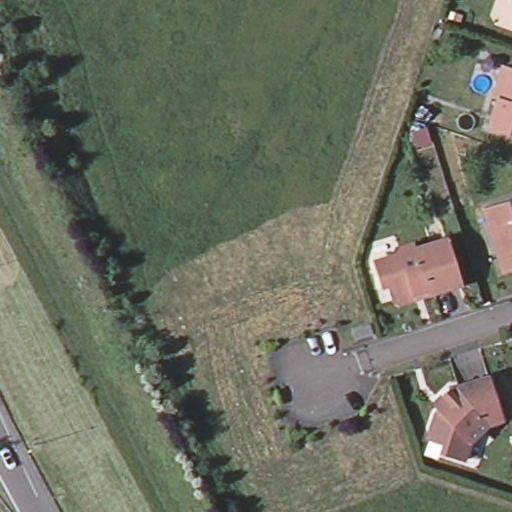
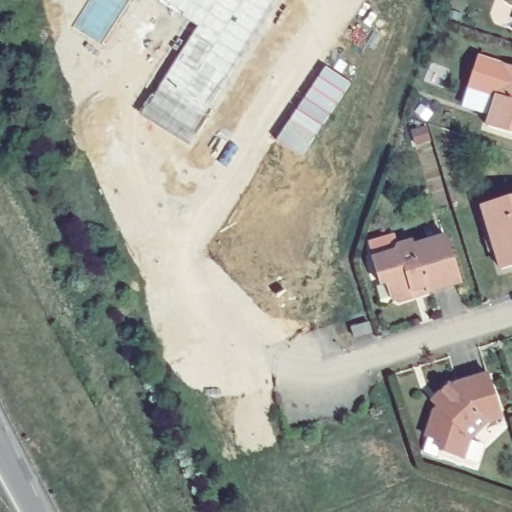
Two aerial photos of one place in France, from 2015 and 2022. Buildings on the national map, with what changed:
new [(141,115),(197,27),(159,1),(160,0),(276,0),(189,142),(141,115)]
unchanged [(495,91),(505,60),(512,62),(512,129),(491,122),(500,92),(495,91)]
unchanged [(512,198),(512,266),(505,268),(485,207),(512,198)]
unchanged [(373,260),(395,252),(397,247),(412,242),(414,247),(446,237),(460,282),(427,292),(425,287),(412,291),(406,300),(400,301),(390,297),(386,282),(380,284),(373,260)]
unchanged [(352,324),(367,320),(371,329),(365,331),(364,329),(355,332),(352,324)]
unchanged [(494,417),(479,421),(462,438),(455,457),(432,448),(435,441),(420,433),(432,407),(435,404),(430,398),(433,394),(443,382),(446,386),(449,382),(480,374),(494,417)]

